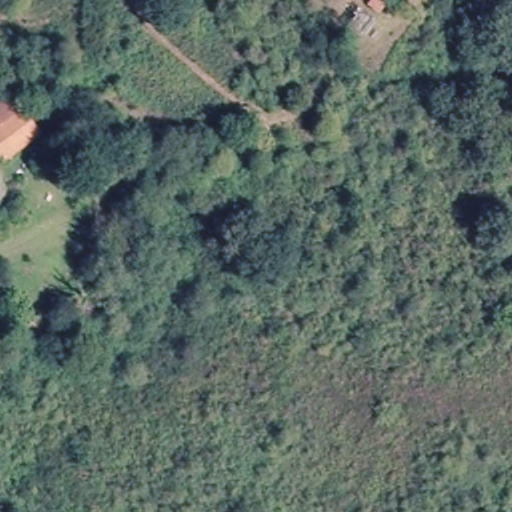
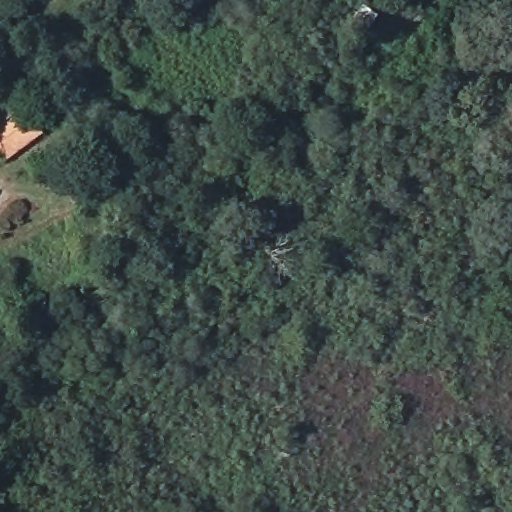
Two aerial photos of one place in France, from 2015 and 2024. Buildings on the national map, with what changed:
unchanged [(0,165),(0,119),(18,103),(40,134),(0,165)]

